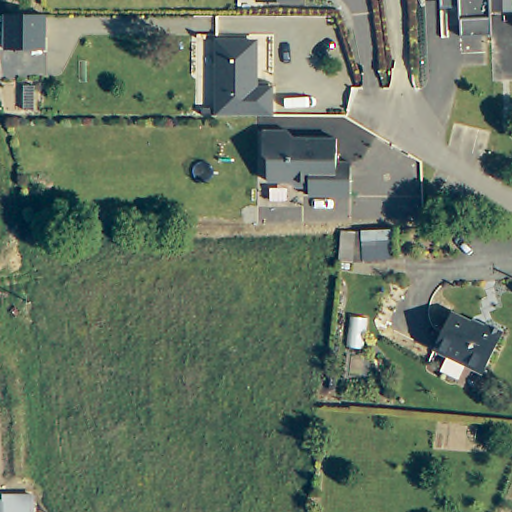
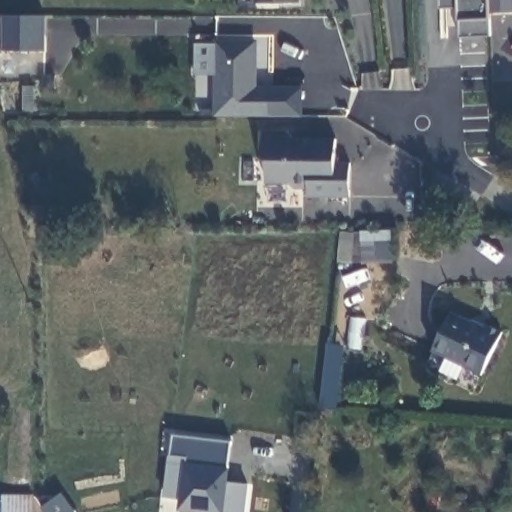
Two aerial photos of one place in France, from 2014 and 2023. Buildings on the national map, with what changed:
new [(490,34),(461,36),(459,6),(442,6),(442,0),(512,0),(512,11),(490,12),(490,34)]
demolished [(512,11),(490,12),(490,0),(512,0),(512,11)]
unchanged [(49,18),(49,53),(9,53),(9,18),(49,18)]
unchanged [(248,45),(258,49),(258,60),(253,65),(253,73),(257,74),(258,91),(273,91),(273,119),(213,119),(213,44),(248,45)]
unchanged [(309,199),(309,190),(294,190),(289,185),(268,185),(268,163),(263,158),(263,134),(288,134),(295,141),(337,142),(337,165),(351,166),(351,199),(309,199)]
unchanged [(397,234),(397,266),(389,266),(388,278),(344,277),(344,235),(397,234)]
unchanged [(481,325),(486,323),(503,331),(482,374),(432,350),(443,328),(452,311),(481,325)]
new [(249,482),(247,512),(209,512),(179,509),(181,497),(165,496),(173,433),(231,441),(228,480),(249,482)]
unchanged [(3,512),(3,500),(3,495),(33,495),(33,512),(3,512)]
unchanged [(0,512),(0,500),(3,500),(3,512),(0,512)]

